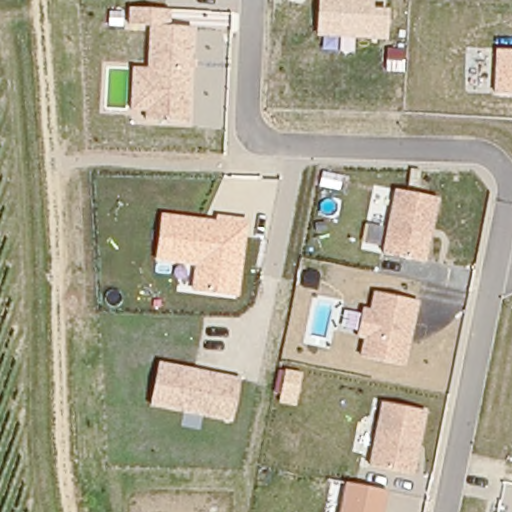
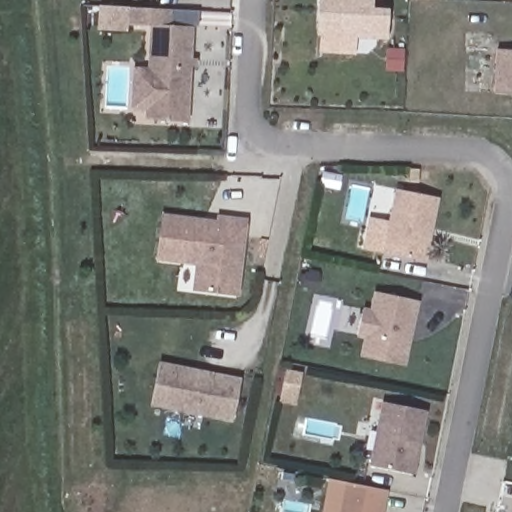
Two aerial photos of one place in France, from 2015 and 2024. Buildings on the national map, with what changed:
unchanged [(387,40),(316,37),(318,0),(373,0),(373,8),(388,9),(387,40)]
unchanged [(171,26),(194,27),(194,59),(196,59),(196,69),(192,68),(189,122),(145,120),(145,111),(131,111),(131,67),(146,67),(148,25),(129,25),(129,9),(170,10),(171,26)]
unchanged [(495,93),(495,50),(512,50),(512,93),(495,93)]
unchanged [(382,254),(395,192),(440,199),(426,262),(382,254)]
unchanged [(216,215),(245,218),(239,296),(191,291),(194,266),(155,261),(160,214),(215,221),(216,215)]
unchanged [(359,357),(362,338),(355,337),(364,307),(370,309),(375,293),(420,301),(405,367),(359,357)]
unchanged [(231,422),(150,407),(159,362),(240,377),(231,422)]
unchanged [(368,467),(380,402),(427,411),(414,474),(368,467)]
unchanged [(387,492),(383,512),(340,512),(345,483),(387,492)]

